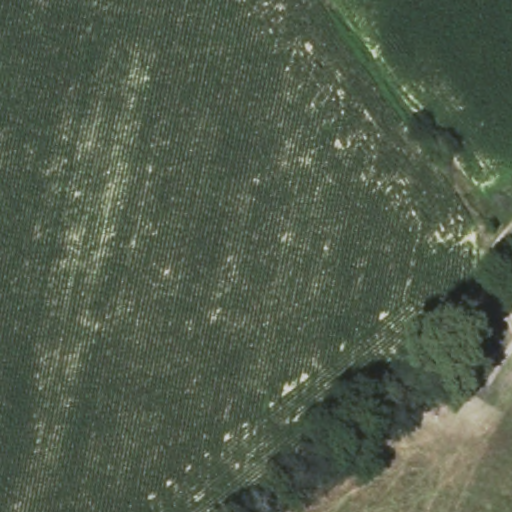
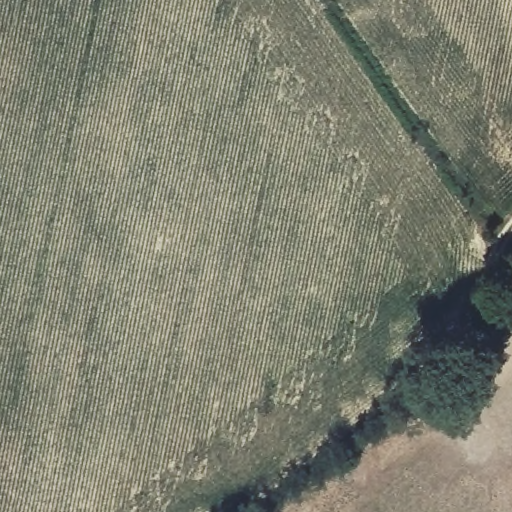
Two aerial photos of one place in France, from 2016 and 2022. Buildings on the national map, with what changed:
unchanged [(485,340),(501,353),(472,390),(455,376),(485,340)]

